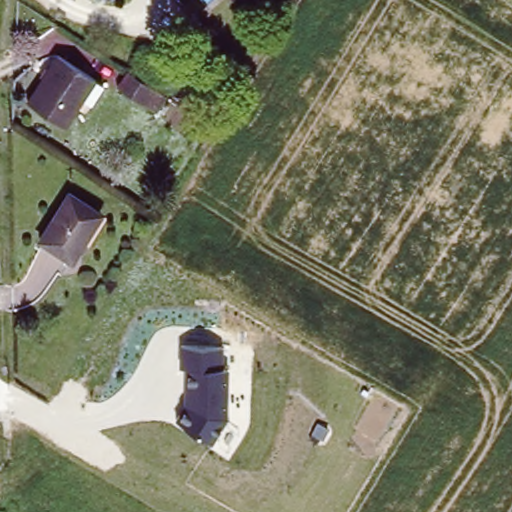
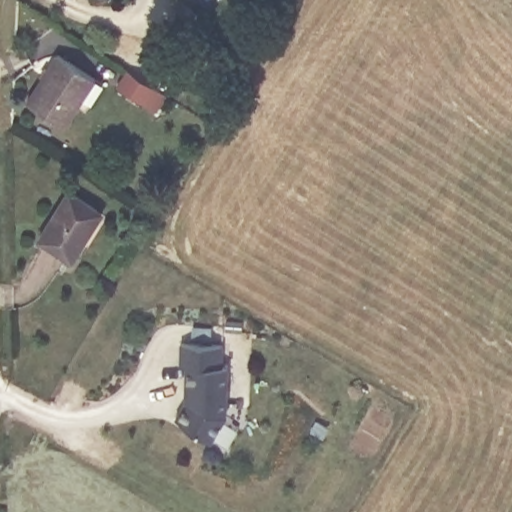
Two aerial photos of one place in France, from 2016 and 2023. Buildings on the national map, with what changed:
unchanged [(90,73),(59,120),(24,97),(55,49),(90,73)]
unchanged [(167,95),(157,111),(117,87),(127,70),(167,95)]
unchanged [(94,207),(75,238),(80,241),(70,258),(37,238),(66,190),(94,207)]
unchanged [(185,406),(187,368),(179,368),(180,342),(222,343),(222,367),(229,367),(229,413),(214,441),(177,421),(185,406)]

